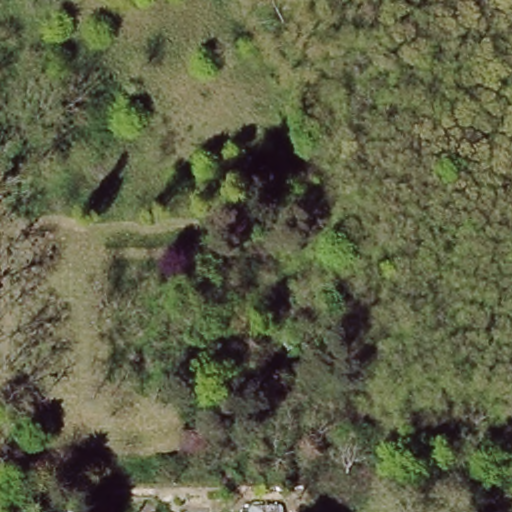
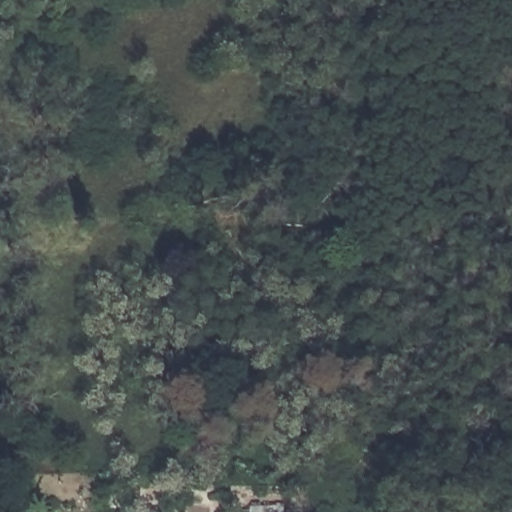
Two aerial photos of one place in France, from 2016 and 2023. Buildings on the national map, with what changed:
unchanged [(179,431),(211,433),(211,460),(176,458),(179,431)]
unchanged [(260,512),(274,511),(275,512),(260,512)]

